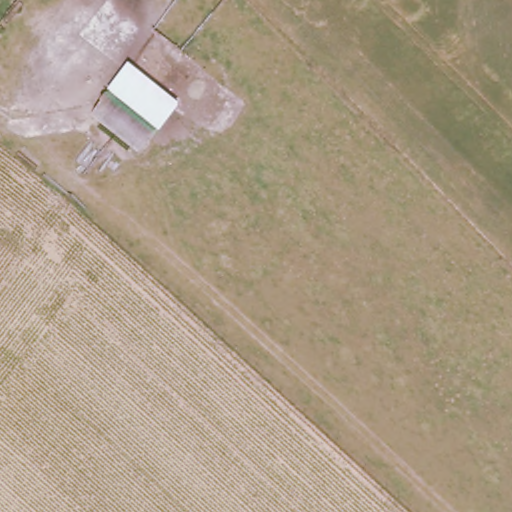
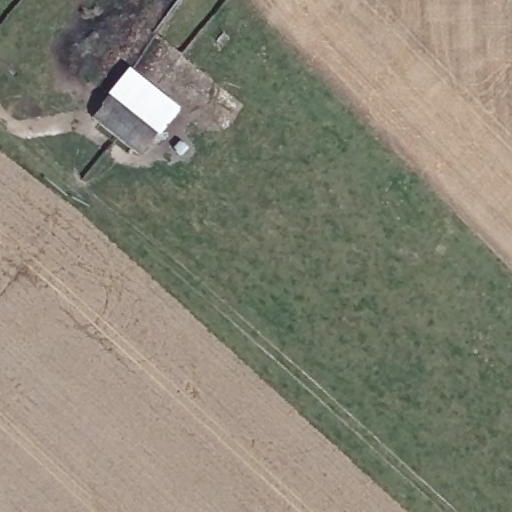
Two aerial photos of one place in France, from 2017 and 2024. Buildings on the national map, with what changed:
unchanged [(182,115),(140,155),(92,113),(106,99),(101,95),(124,69),(182,115)]

